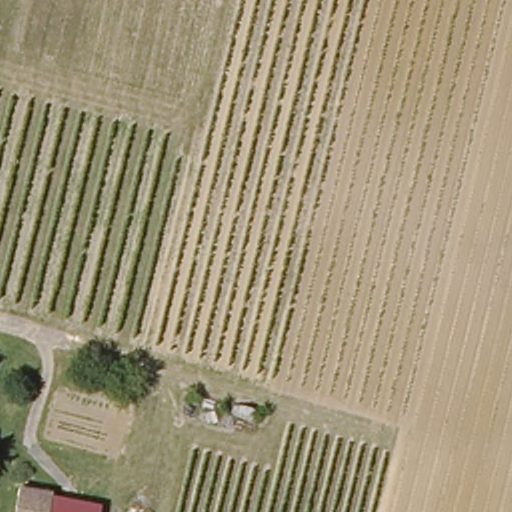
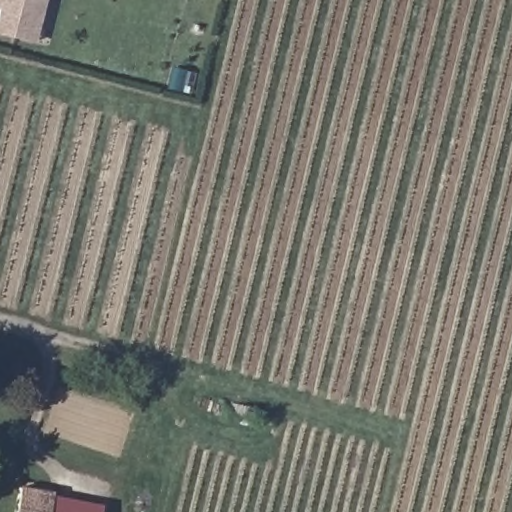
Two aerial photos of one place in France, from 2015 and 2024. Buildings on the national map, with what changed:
new [(36,42),(0,32),(0,0),(46,0),(36,42)]
unchanged [(52,495),(48,512),(13,512),(18,487),(52,495)]
new [(102,505),(100,512),(48,512),(52,495),(102,505)]

